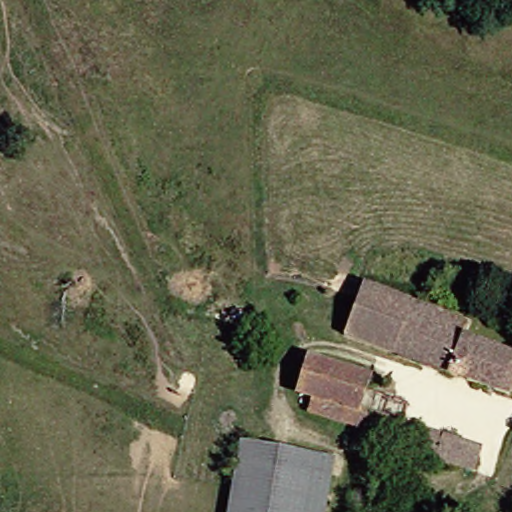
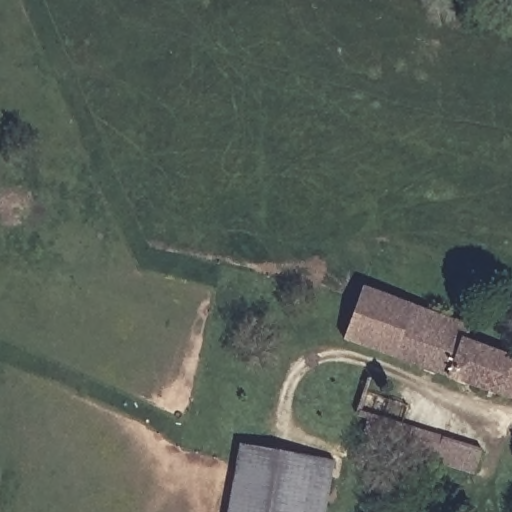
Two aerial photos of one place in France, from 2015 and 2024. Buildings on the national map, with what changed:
unchanged [(371,286),(478,326),(477,341),(512,355),(512,397),(353,338),(371,286)]
demolished [(318,355),(372,375),(360,419),(299,400),(318,355)]
unchanged [(409,455),(394,452),(397,437),(381,433),(382,426),(360,419),(372,375),(388,381),(388,393),(409,401),(404,422),(484,445),(475,467),(458,465),(411,451),(409,455)]
unchanged [(334,463),(326,512),(242,512),(253,447),(334,463)]

